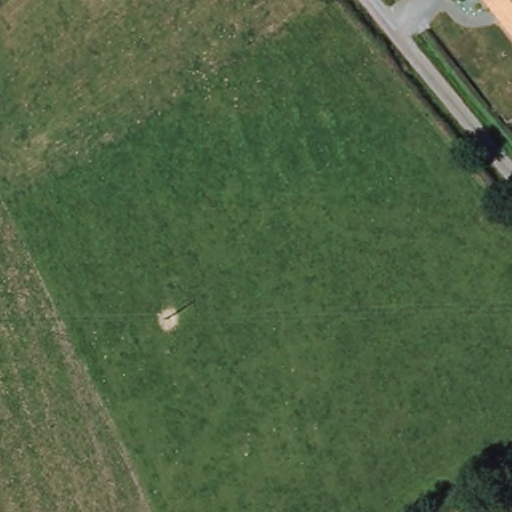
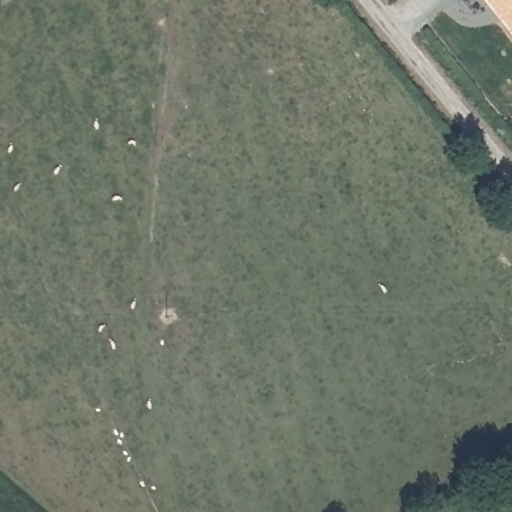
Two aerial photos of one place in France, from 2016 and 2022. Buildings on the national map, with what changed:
unchanged [(484,0),(512,0),(512,37),(484,0)]

